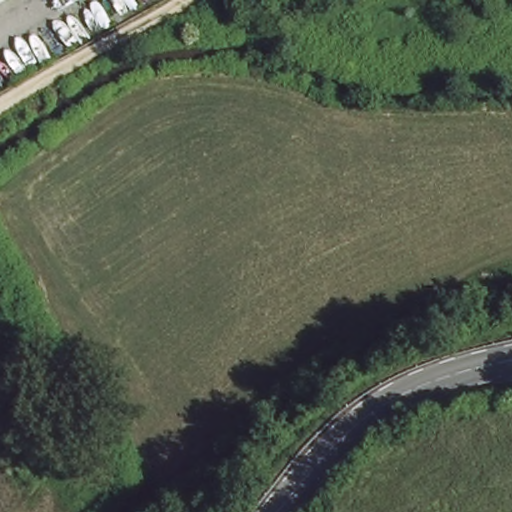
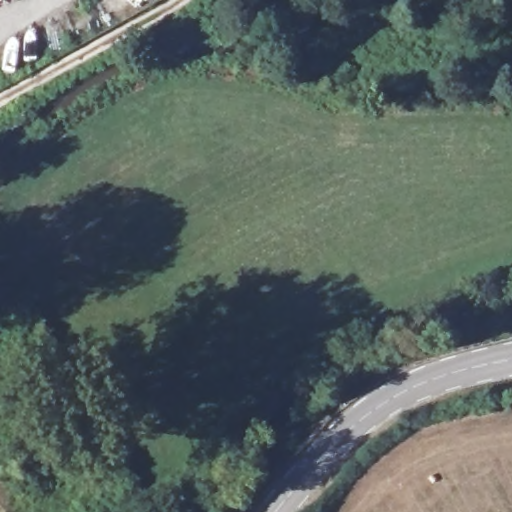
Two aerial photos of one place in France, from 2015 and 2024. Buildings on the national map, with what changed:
[]

